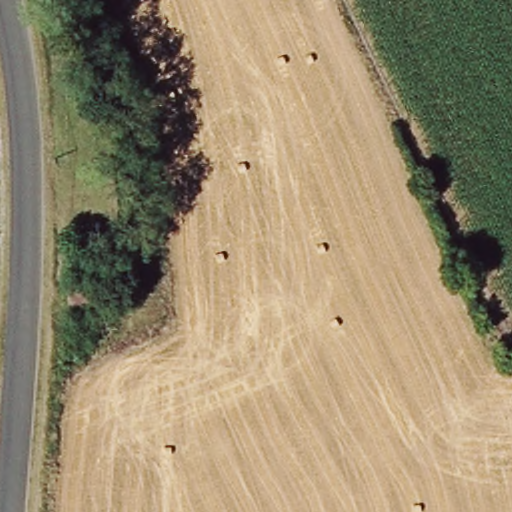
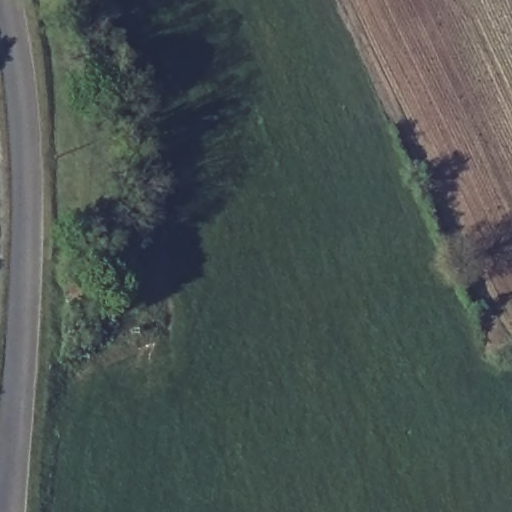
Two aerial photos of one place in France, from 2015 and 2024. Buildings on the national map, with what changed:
unchanged [(93,322),(66,328),(64,306),(90,301),(93,322)]

